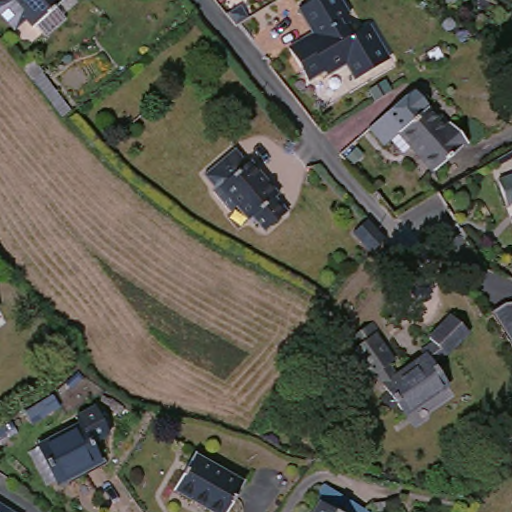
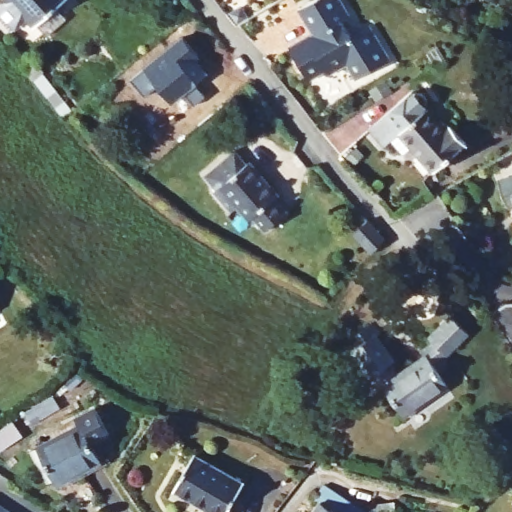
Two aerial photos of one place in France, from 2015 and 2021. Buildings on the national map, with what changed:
unchanged [(40,25),(38,27),(32,21),(18,33),(1,12),(2,2),(4,0),(65,0),(67,2),(58,10),(67,22),(50,37),(40,25)]
unchanged [(344,0),(353,17),(345,25),(352,39),(370,29),(390,63),(357,82),(347,65),(328,76),(325,71),(307,81),(290,51),(315,35),(302,10),(321,0),(344,0)]
new [(180,37),(195,57),(192,61),(203,75),(192,85),(202,97),(190,107),(180,94),(168,104),(155,87),(141,97),(127,81),(180,37)]
unchanged [(18,68),(29,59),(41,72),(29,82),(18,68)]
unchanged [(422,110),(440,130),(446,127),(462,146),(430,172),(396,132),(422,110)]
unchanged [(375,144),(349,169),(340,159),(362,139),(366,135),(375,144)]
unchanged [(250,166),(255,162),(282,196),(279,201),(290,214),(267,232),(255,217),(250,221),(239,208),(232,212),(217,192),(220,189),(210,174),(237,151),(250,166)]
unchanged [(498,183),(512,178),(512,207),(508,208),(498,183)]
unchanged [(4,306),(0,308),(0,300),(4,306)]
unchanged [(491,316),(505,307),(512,307),(512,346),(511,345),(491,316)]
unchanged [(404,413),(374,372),(368,376),(351,351),(361,345),(355,335),(372,324),(378,336),(375,339),(391,360),(387,365),(394,373),(424,353),(422,350),(436,342),(431,337),(453,313),(471,332),(450,354),(445,351),(430,363),(446,384),(404,413)]
unchanged [(79,427),(76,421),(96,411),(110,438),(91,447),(100,466),(56,487),(37,449),(79,427)]
unchanged [(194,458),(241,486),(225,512),(207,512),(174,492),(194,458)]
unchanged [(14,512),(0,512),(0,503),(14,512)]
unchanged [(318,503),(332,512),(312,512),(318,503)]

